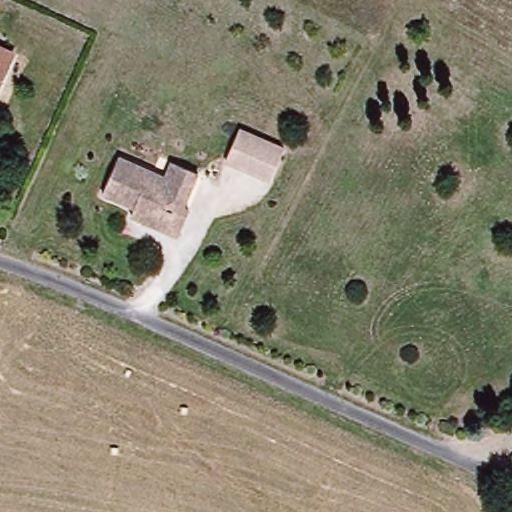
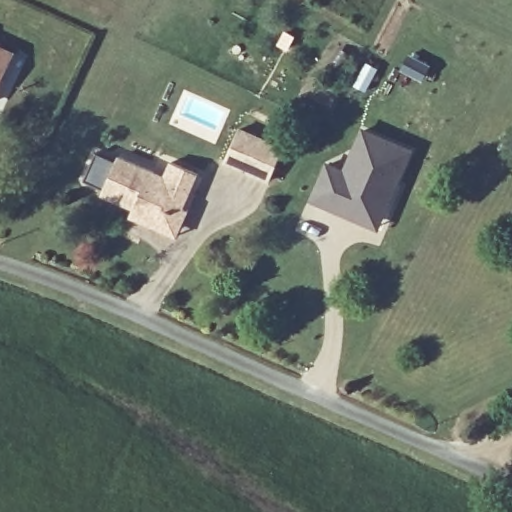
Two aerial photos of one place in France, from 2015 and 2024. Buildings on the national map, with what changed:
unchanged [(0,78),(0,48),(12,54),(0,78)]
new [(375,229),(325,207),(309,199),(324,165),(342,173),(361,131),(408,153),(393,185),(395,186),(375,229)]
unchanged [(265,189),(237,175),(223,168),(238,136),(253,144),(282,158),(265,189)]
unchanged [(169,236),(125,215),(128,210),(96,194),(114,156),(159,178),(167,161),(194,174),(178,207),(182,209),(169,236)]

